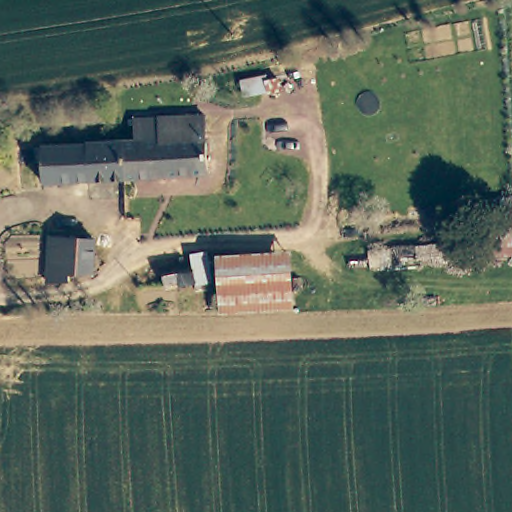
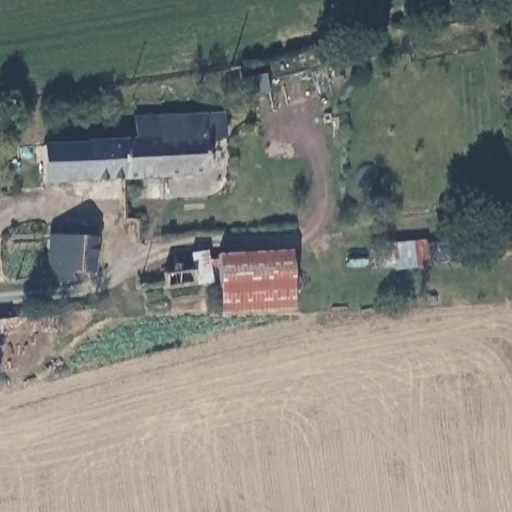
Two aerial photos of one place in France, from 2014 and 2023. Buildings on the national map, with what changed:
unchanged [(161,120),(206,117),(210,174),(165,176),(161,120)]
unchanged [(127,179),(123,139),(134,139),(133,121),(161,120),(165,176),(127,179)]
unchanged [(127,179),(46,183),(43,144),(123,139),(127,179)]
unchanged [(97,263),(74,262),(73,270),(51,269),(53,229),(98,231),(97,263)]
unchanged [(298,306),(228,317),(220,260),(289,250),(298,306)]
unchanged [(164,284),(161,271),(190,265),(191,278),(164,284)]

